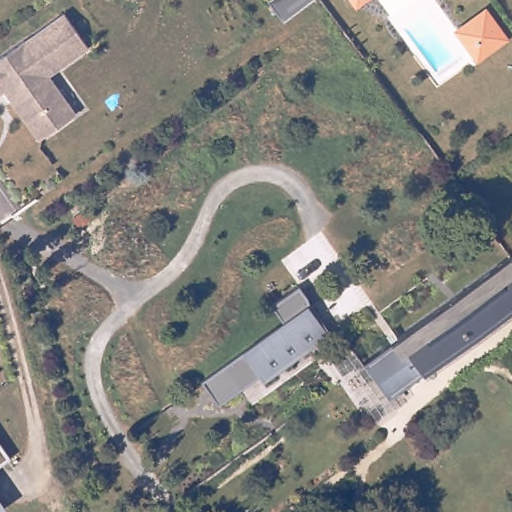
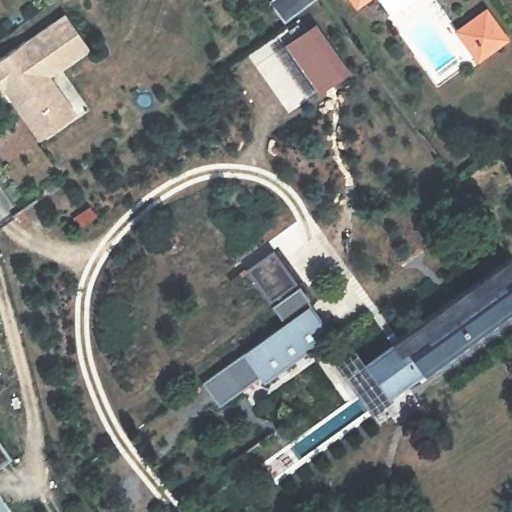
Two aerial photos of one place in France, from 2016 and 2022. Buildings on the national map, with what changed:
unchanged [(272,0),(318,0),(283,24),(267,3),(272,0)]
unchanged [(361,4),(353,2),(352,0),(366,0),(361,4)]
unchanged [(468,25),(485,13),(505,41),(477,61),(470,51),(457,33),(468,25)]
unchanged [(26,119),(12,99),(6,90),(0,95),(0,59),(27,41),(67,14),(91,48),(51,76),(64,94),(78,115),(74,117),(45,138),(41,140),(26,119)]
new [(315,20),(350,72),(307,103),(271,51),(315,20)]
unchanged [(480,278),(475,270),(491,258),(496,266),(500,263),(473,226),(482,219),(512,259),(512,311),(392,398),(366,362),(480,278)]
unchanged [(300,282),(331,331),(263,379),(260,375),(219,402),(201,379),(268,332),(285,320),(272,302),(300,282)]
unchanged [(0,465),(0,439),(12,457),(0,465)]
unchanged [(4,505),(0,507),(0,499),(4,505)]
unchanged [(124,512),(120,512),(122,511),(124,512)]

